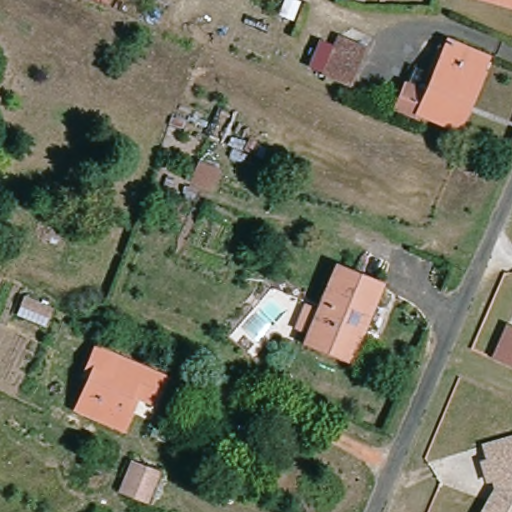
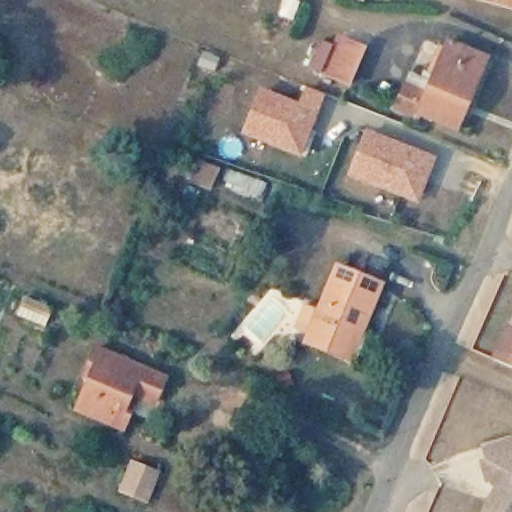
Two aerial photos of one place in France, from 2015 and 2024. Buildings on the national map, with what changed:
unchanged [(277,15),(283,0),(296,0),(300,1),(292,20),(277,15)]
unchanged [(512,0),(512,6),(491,0),(512,0)]
unchanged [(321,72),(321,75),(295,64),(305,39),(331,50),(336,37),(361,47),(346,82),(321,72)]
unchanged [(456,129),(418,112),(416,116),(395,107),(404,85),(425,94),(446,40),(486,56),(456,129)]
new [(300,157),(241,135),(259,89),(298,105),(304,89),(323,96),(316,112),(300,157)]
new [(347,176),(365,130),(433,158),(417,204),(347,176)]
unchanged [(206,189),(191,182),(200,164),(214,170),(206,189)]
unchanged [(342,355),(305,340),(307,334),(293,328),(303,305),(317,311),(336,267),(377,285),(358,331),(347,357),(342,355)]
unchanged [(44,325),(16,313),(24,296),(51,308),(44,325)]
unchanged [(497,360),(511,327),(512,328),(512,366),(497,360)]
unchanged [(130,411),(123,429),(75,409),(88,378),(82,376),(86,365),(94,347),(142,367),(129,398),(135,400),(130,411)]
unchanged [(492,501),(500,488),(496,478),(490,480),(485,462),(491,460),(487,446),(512,438),(512,512),(487,512),(492,501)]
unchanged [(156,477),(146,503),(119,491),(129,465),(130,463),(157,475),(156,477)]

